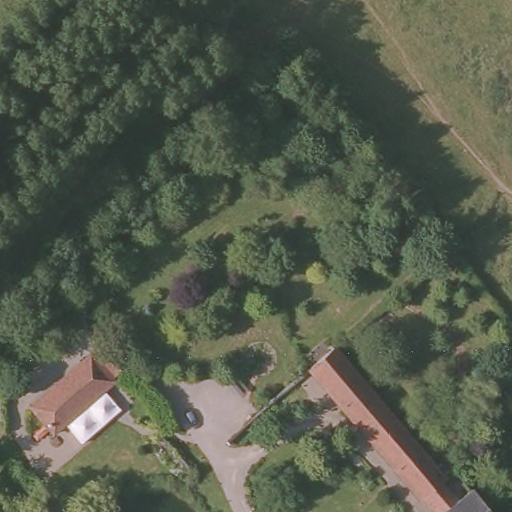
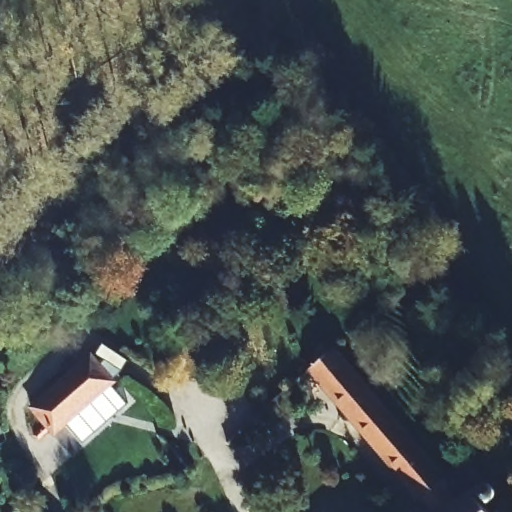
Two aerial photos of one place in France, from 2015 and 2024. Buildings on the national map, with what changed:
unchanged [(311,366),(334,347),(438,471),(450,463),(491,512),(433,512),(311,366)]
unchanged [(57,436),(35,411),(90,358),(115,383),(57,436)]

